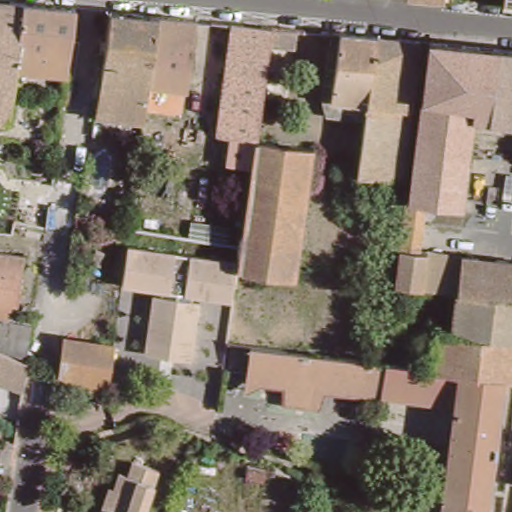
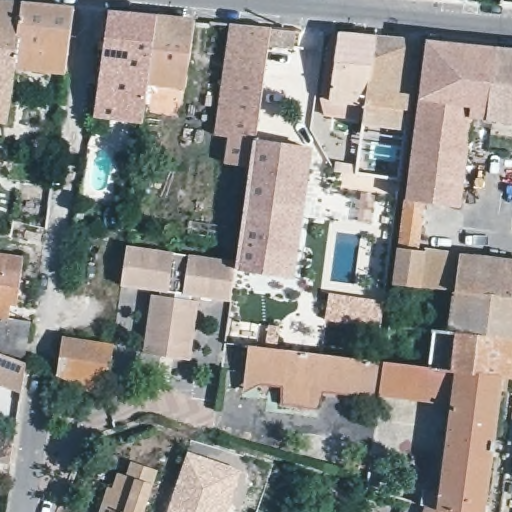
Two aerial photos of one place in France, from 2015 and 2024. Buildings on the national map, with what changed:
unchanged [(499,0),(512,0),(512,4),(499,2),(499,0)]
unchanged [(72,13),(64,79),(22,74),(19,92),(10,91),(4,127),(0,126),(0,5),(72,13)]
unchanged [(137,139),(123,137),(123,126),(108,124),(105,142),(86,141),(103,17),(152,22),(145,90),(138,128),(147,129),(144,153),(136,151),(137,139)]
unchanged [(193,27),(182,97),(145,90),(152,22),(193,27)]
unchanged [(321,157),(323,146),(346,149),(355,92),(320,86),(329,23),(410,32),(390,175),(378,173),(379,165),(350,161),(349,169),(327,165),(328,157),(321,157)]
unchanged [(247,176),(241,176),(242,167),(233,166),(235,145),(211,142),(227,31),(266,35),(252,148),(247,176)]
unchanged [(415,246),(422,247),(417,283),(386,280),(388,268),(398,195),(404,196),(423,42),(512,52),(512,122),(469,117),(457,203),(421,198),(415,246)]
unchanged [(252,148),(310,157),(295,272),(292,286),(233,277),(235,258),(236,252),(247,176),(252,148)]
unchanged [(131,176),(99,170),(106,149),(134,154),(131,176)]
unchanged [(7,296),(27,300),(22,337),(0,328),(0,233),(21,237),(15,283),(10,283),(7,296)]
unchanged [(233,277),(230,301),(204,297),(194,360),(141,352),(151,290),(121,284),(128,244),(235,258),(233,277)]
unchanged [(505,259),(512,260),(512,337),(445,327),(451,287),(455,251),(505,259)]
new [(326,320),(331,293),(385,301),(381,327),(326,320)]
unchanged [(423,366),(428,326),(445,327),(512,337),(512,377),(498,376),(423,366)]
unchanged [(27,343),(23,367),(0,358),(0,332),(27,343)]
unchanged [(56,339),(110,351),(103,405),(97,402),(50,379),(56,339)]
unchanged [(414,502),(418,485),(433,487),(437,446),(420,443),(423,417),(425,400),(371,392),(371,395),(369,409),(361,408),(353,407),(355,393),(316,388),(312,405),(280,399),(283,383),(259,381),(245,372),(249,341),(368,357),(376,357),(423,366),(498,376),(482,512),(420,512),(422,505),(414,502)]
unchanged [(23,367),(20,390),(0,382),(0,358),(23,367)]
unchanged [(0,463),(0,439),(10,443),(8,464),(0,463)]
new [(186,451),(243,470),(229,512),(166,512),(186,451)]
unchanged [(120,474),(128,477),(133,462),(160,472),(146,512),(101,512),(110,487),(115,488),(120,474)]

